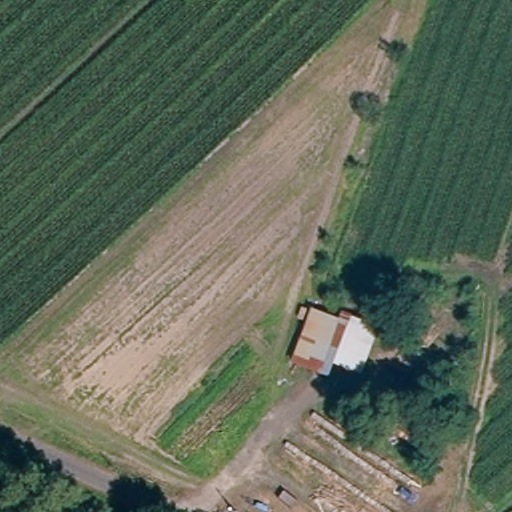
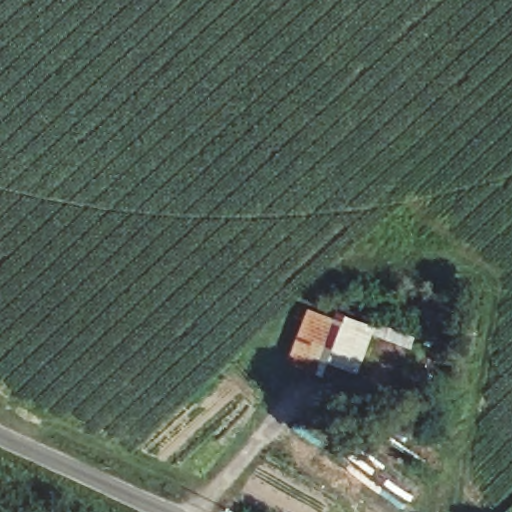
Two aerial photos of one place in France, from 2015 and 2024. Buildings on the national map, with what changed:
unchanged [(348,327),(326,382),(299,371),(322,317),(348,327)]

